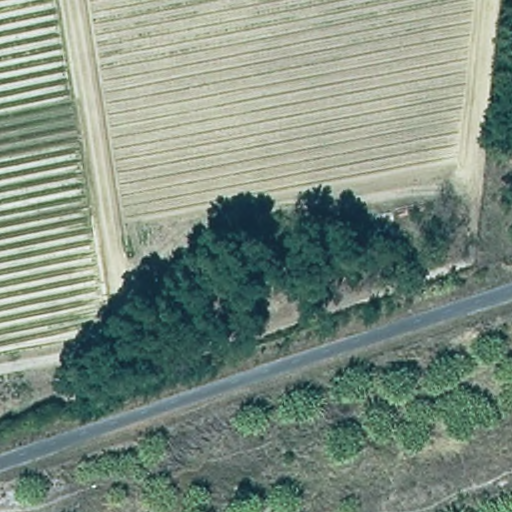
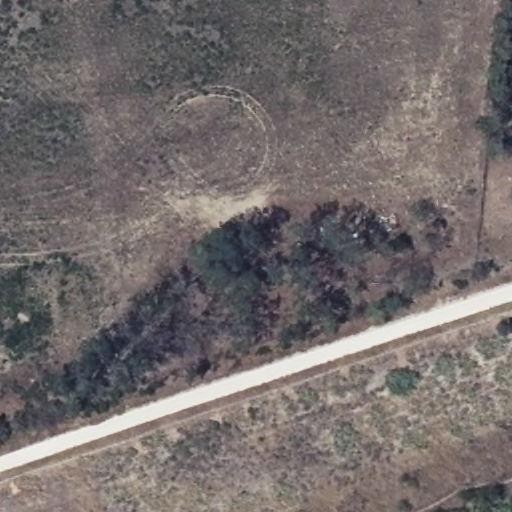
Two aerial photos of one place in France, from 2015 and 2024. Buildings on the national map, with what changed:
unchanged [(220,219),(233,211),(241,223),(230,232),(220,219)]

